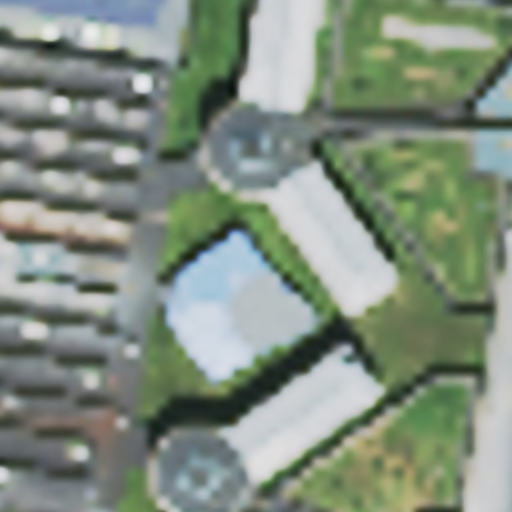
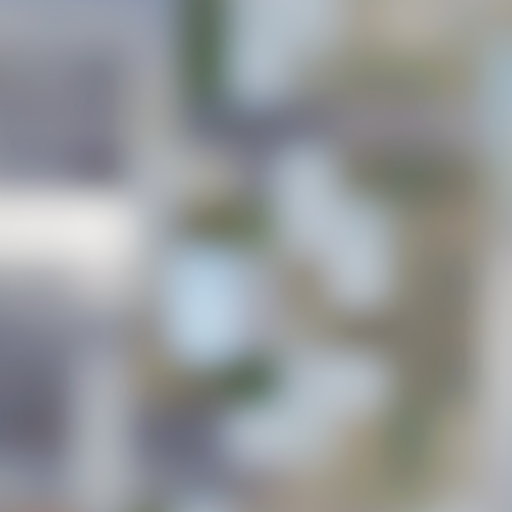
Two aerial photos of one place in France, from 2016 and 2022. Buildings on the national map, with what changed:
unchanged [(202,149),(204,158),(213,171),(223,181),(174,190),(161,275),(156,303),(136,422),(156,433),(153,437),(149,451),(148,465),(130,461),(120,512),(65,512),(0,503),(0,0),(189,0),(164,156),(202,149)]
unchanged [(251,192),(235,188),(223,181),(213,171),(204,158),(202,149),(201,141),(201,125),(207,110),(217,99),(227,93),(239,88),(253,0),(321,0),(302,105),(307,143),(402,274),(351,310),(264,190),(251,192)]
unchanged [(479,107),(478,95),(512,57),(512,105),(479,107)]
unchanged [(478,152),(476,123),(512,121),(512,171),(478,152)]
unchanged [(173,278),(174,267),(242,220),(284,283),(300,288),(320,315),(293,337),(277,338),(216,384),(166,315),(168,304),(156,303),(161,275),(173,278)]
unchanged [(170,504),(159,497),(150,482),(148,465),(149,451),(153,437),(156,433),(164,424),(177,416),(191,412),(206,412),(218,414),(226,418),(345,332),(385,386),(255,476),(235,510),(234,512),(169,512),(170,504)]
unchanged [(421,510),(437,512),(420,512),(421,510)]

